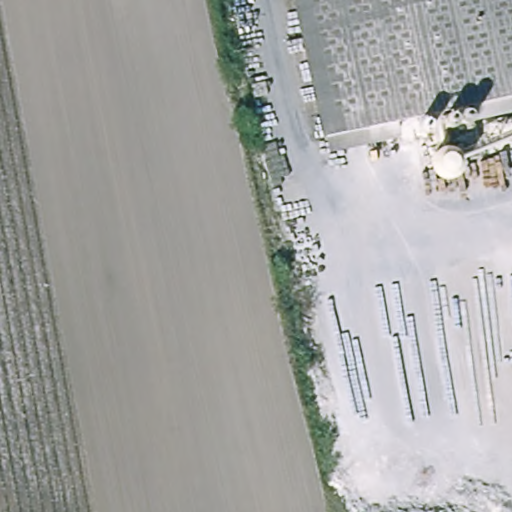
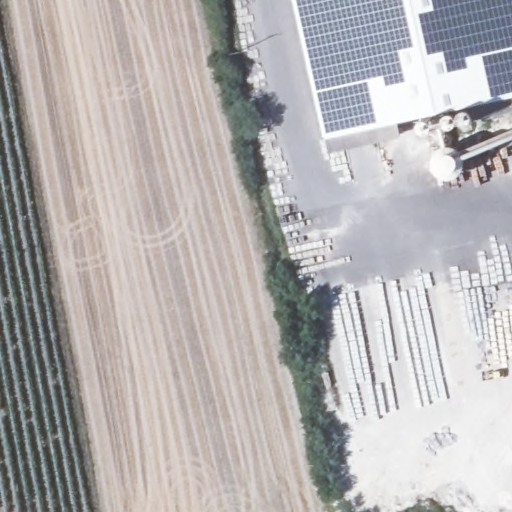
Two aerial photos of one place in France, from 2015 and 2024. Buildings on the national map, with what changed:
unchanged [(302,0),(358,0),(387,124),(334,135),(302,0)]
unchanged [(512,0),(512,97),(387,124),(358,0),(512,0)]

